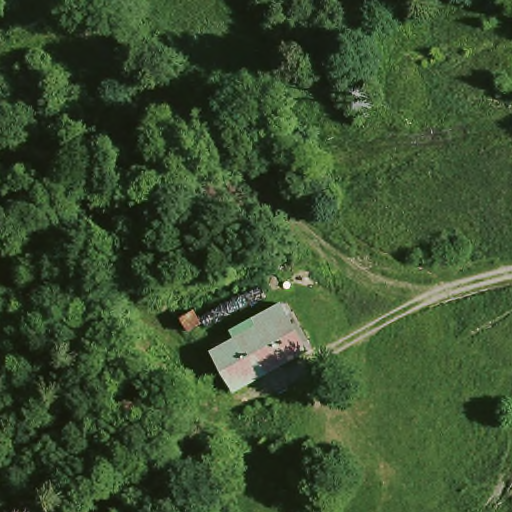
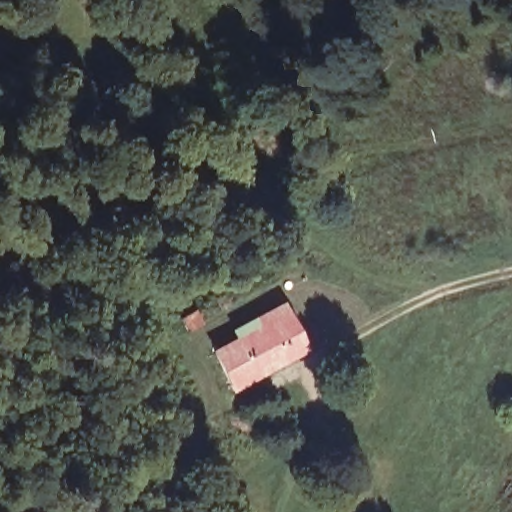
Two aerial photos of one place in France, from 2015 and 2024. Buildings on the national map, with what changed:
unchanged [(236,398),(217,354),(257,329),(250,315),(277,298),(285,310),(310,351),(236,398)]

